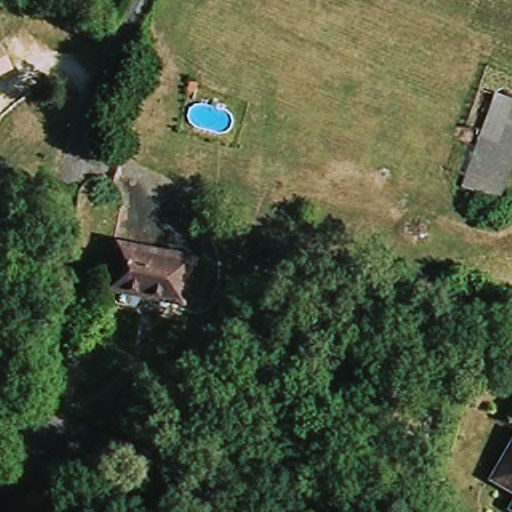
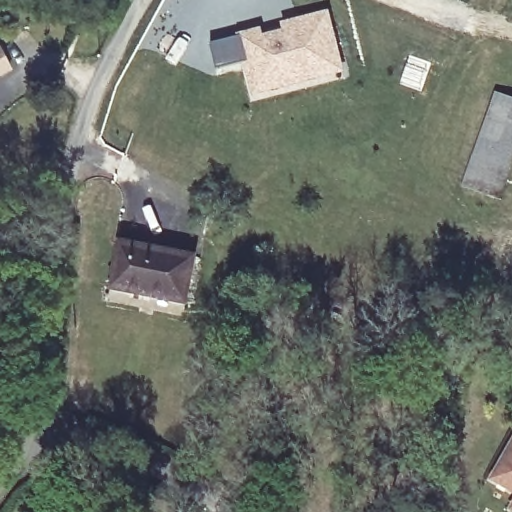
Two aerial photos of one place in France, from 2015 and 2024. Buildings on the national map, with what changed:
new [(294,85),(250,96),(235,39),(255,34),(257,42),(282,35),(280,27),(292,25),(322,17),(335,61),(337,73),(294,85)]
unchanged [(0,74),(0,42),(12,68),(0,74)]
unchanged [(502,92),(512,96),(512,146),(485,135),(502,92)]
unchanged [(464,187),(485,135),(512,146),(512,171),(500,202),(464,187)]
unchanged [(142,290),(138,301),(105,292),(116,244),(205,265),(198,302),(142,290)]
unchanged [(512,464),(512,480),(505,475),(512,464)]

